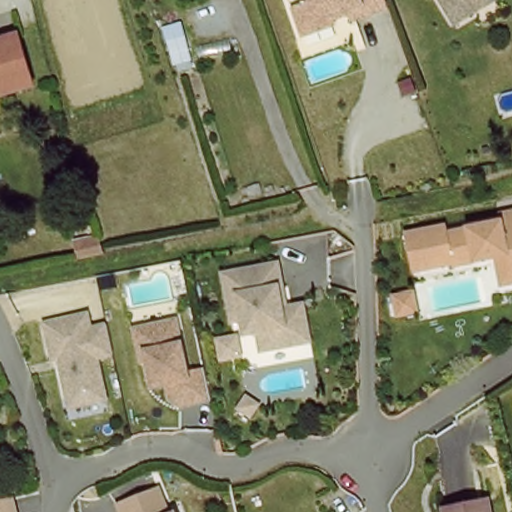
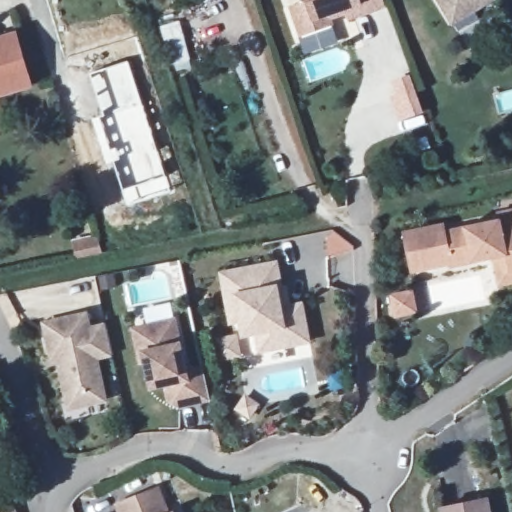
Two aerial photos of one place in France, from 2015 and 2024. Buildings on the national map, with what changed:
unchanged [(318,36),(301,41),(290,11),(323,0),(382,0),(386,12),(349,25),(346,14),(330,20),(333,30),(318,36)]
unchanged [(448,14),(441,0),(493,0),(497,7),(478,17),(455,28),(448,14)]
new [(179,18),(192,68),(170,73),(157,24),(179,18)]
unchanged [(19,37),(34,87),(1,97),(0,98),(0,42),(19,37)]
new [(121,189),(111,161),(105,163),(91,117),(102,113),(89,74),(104,68),(129,59),(143,100),(167,173),(172,191),(127,206),(121,189)]
unchanged [(494,258),(473,262),(452,267),(452,264),(413,272),(404,232),(445,224),(446,231),(465,226),(500,219),(498,212),(512,210),(512,283),(500,286),(494,258)]
new [(99,234),(103,254),(76,260),(71,239),(99,234)]
unchanged [(309,342),(299,346),(262,357),(248,313),(238,317),(226,279),(276,264),(283,287),(277,289),(282,303),(285,302),(296,299),(309,342)]
unchanged [(392,295),(413,291),(418,312),(396,317),(392,295)]
unchanged [(48,357),(41,320),(86,310),(89,328),(105,324),(114,359),(101,363),(108,402),(68,411),(55,355),(48,357)]
unchanged [(180,413),(170,406),(167,391),(153,395),(142,349),(137,350),(132,326),(144,323),(172,317),(187,380),(204,376),(211,405),(180,413)]
unchanged [(169,490),(172,512),(142,512),(140,493),(169,490)]
unchanged [(449,512),(447,503),(492,495),(495,512),(449,512)]

